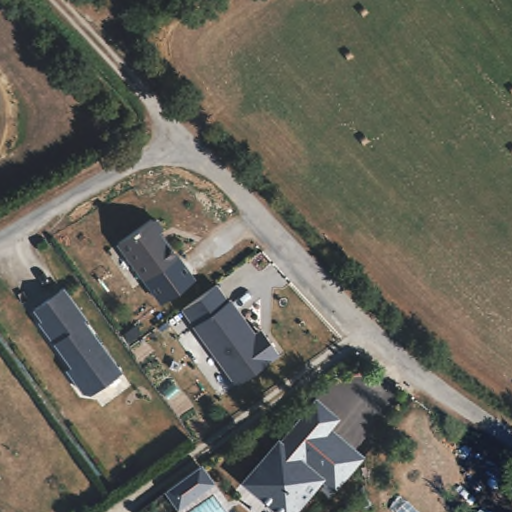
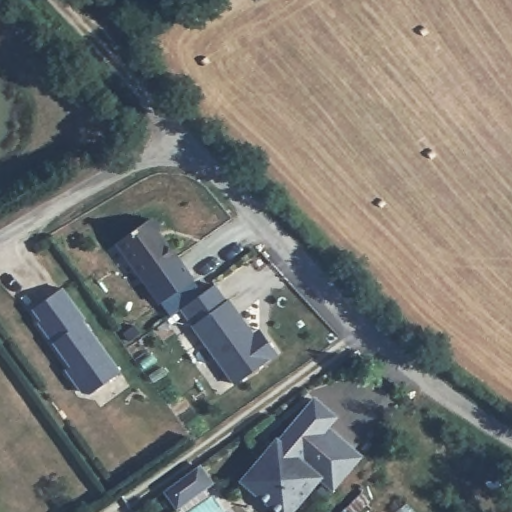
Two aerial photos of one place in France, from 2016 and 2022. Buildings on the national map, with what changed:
unchanged [(117,242),(149,219),(155,220),(160,227),(159,232),(176,256),(144,280),(117,242)]
unchanged [(69,365),(38,321),(40,319),(33,308),(62,287),(81,314),(79,315),(119,371),(90,393),(81,392),(75,382),(64,368),(69,365)]
unchanged [(253,335),(259,330),(265,338),(277,355),(234,385),(192,325),(228,300),(253,335)]
unchanged [(338,415),(330,430),(363,456),(334,490),(322,480),(296,512),(281,512),(242,480),(314,395),(338,415)]
unchanged [(368,502),(359,512),(341,512),(359,493),(368,502)]

